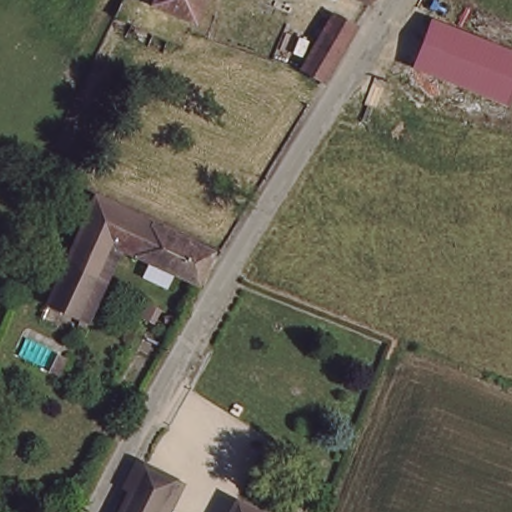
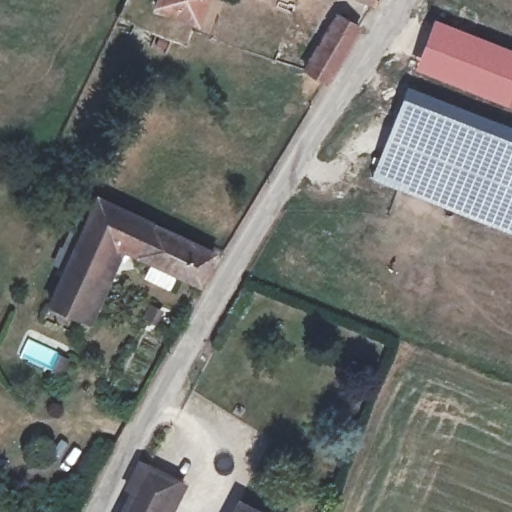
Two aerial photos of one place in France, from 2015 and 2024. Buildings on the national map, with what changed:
unchanged [(149,13),(154,0),(207,0),(193,33),(149,13)]
unchanged [(358,0),(379,0),(375,6),(358,0)]
unchanged [(321,79),(306,66),(343,18),(356,29),(321,79)]
demolished [(512,24),(512,29),(509,28),(512,24)]
unchanged [(417,65),(427,25),(512,50),(512,103),(414,75),(417,65)]
new [(512,234),(364,177),(404,86),(512,128),(512,234)]
unchanged [(79,322),(44,304),(96,184),(131,199),(79,322)]
unchanged [(143,267),(126,259),(94,329),(79,322),(131,199),(168,215),(143,267)]
unchanged [(168,215),(218,239),(196,291),(143,267),(168,215)]
unchanged [(83,353),(74,371),(39,352),(47,337),(83,353)]
unchanged [(141,461),(184,481),(170,512),(118,512),(141,461)]
unchanged [(259,512),(227,512),(235,499),(259,512)]

